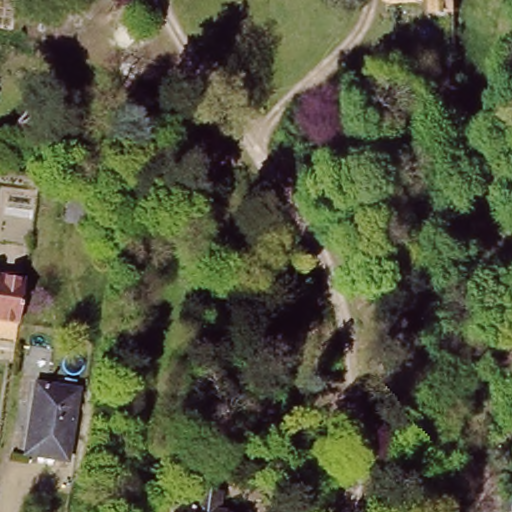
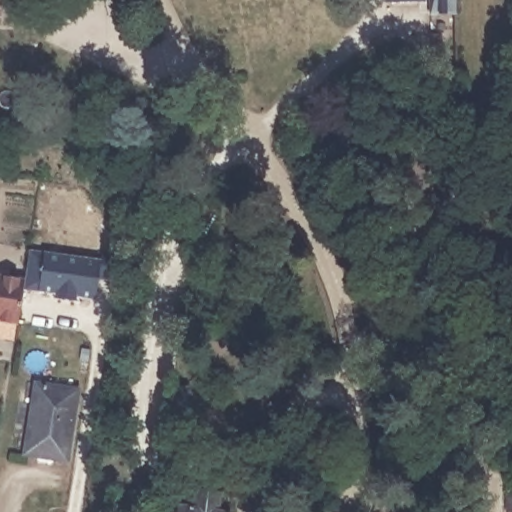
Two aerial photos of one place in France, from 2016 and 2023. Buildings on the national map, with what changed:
unchanged [(425,4),(425,7),(387,7),(387,0),(457,0),(457,21),(433,20),(433,4),(425,4)]
unchanged [(86,226),(71,224),(71,223),(75,194),(90,196),(86,226)]
unchanged [(470,262),(462,262),(462,252),(470,252),(470,262)]
new [(27,293),(33,254),(104,266),(97,304),(79,301),(78,306),(60,303),(61,298),(27,293)]
unchanged [(20,328),(0,324),(0,279),(28,284),(20,328)]
unchanged [(82,392),(70,461),(26,452),(38,384),(45,385),(82,392)]
unchanged [(221,507),(220,512),(196,512),(197,508),(197,504),(221,507)]
unchanged [(163,512),(132,512),(133,506),(163,510),(163,512)]

